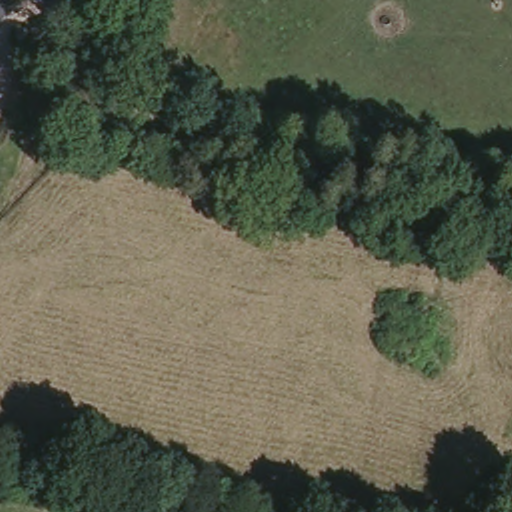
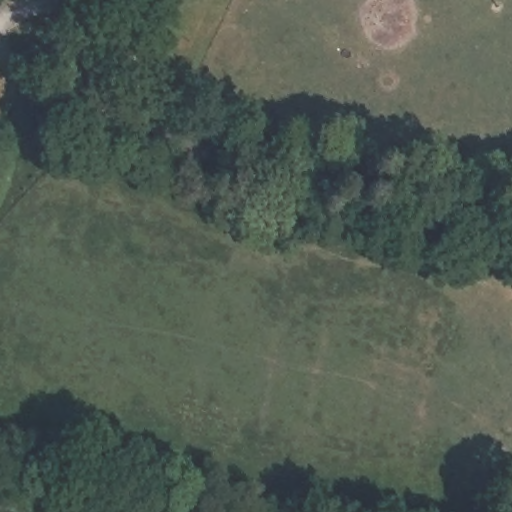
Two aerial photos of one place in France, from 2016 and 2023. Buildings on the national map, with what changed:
[]

